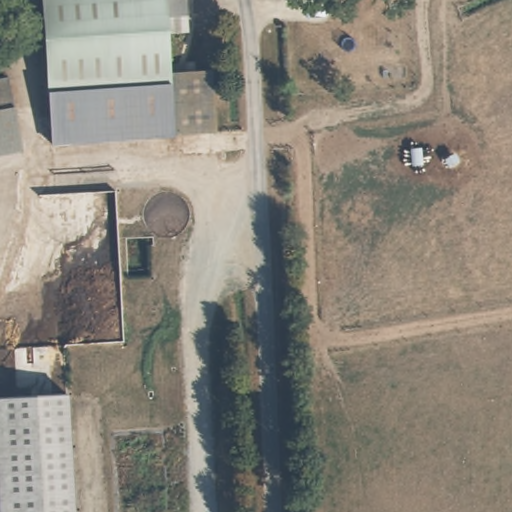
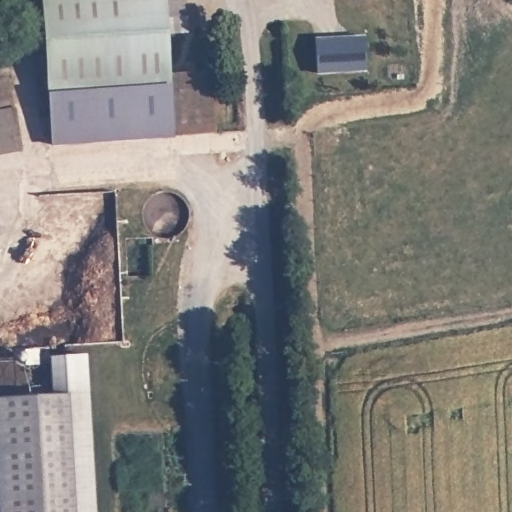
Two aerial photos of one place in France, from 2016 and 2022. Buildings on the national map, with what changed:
unchanged [(171,12),(174,72),(178,134),(54,144),(44,0),(138,0),(139,14),(171,12)]
unchanged [(171,12),(139,14),(138,0),(185,0),(185,11),(171,12)]
new [(364,37),(367,72),(317,74),(316,39),(364,37)]
unchanged [(217,130),(178,134),(174,72),(213,70),(217,130)]
unchanged [(17,135),(0,139),(0,76),(1,76),(17,135)]
unchanged [(69,395),(76,512),(0,512),(0,398),(69,395)]

